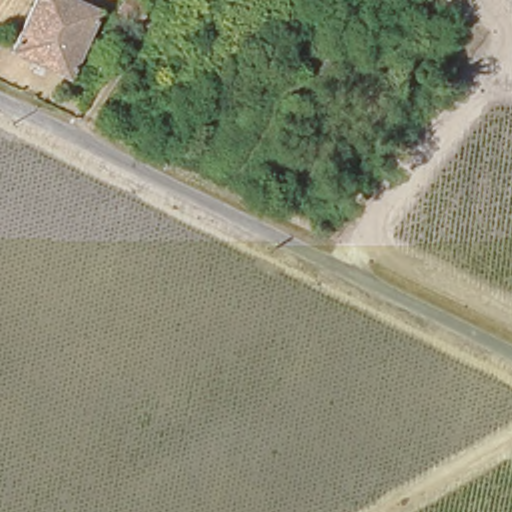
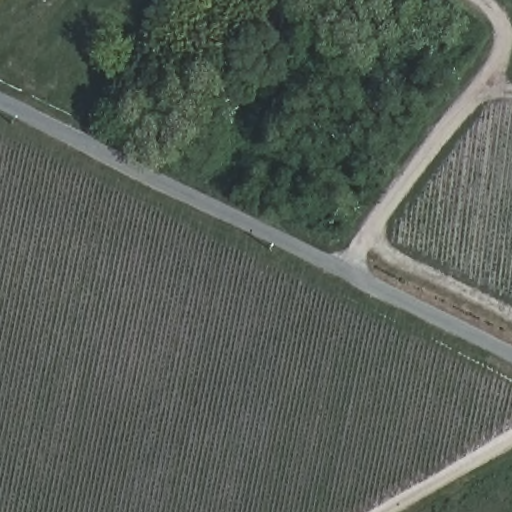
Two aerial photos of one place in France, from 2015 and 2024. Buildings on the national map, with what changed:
demolished [(68,75),(8,49),(29,0),(79,0),(96,7),(68,75)]

